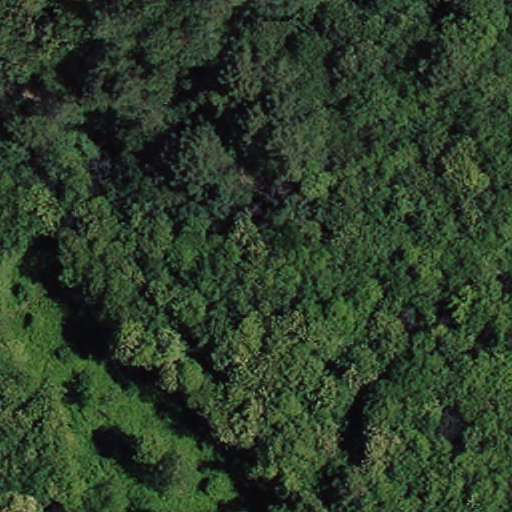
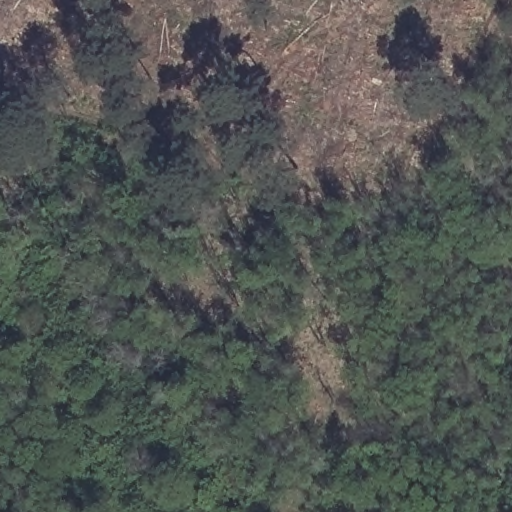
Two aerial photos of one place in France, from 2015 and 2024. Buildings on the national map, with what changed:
[]

